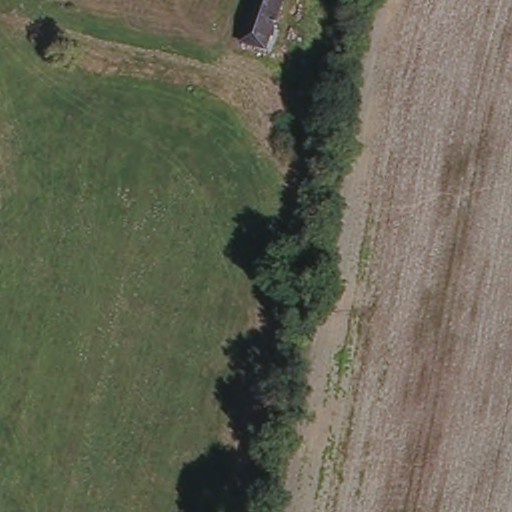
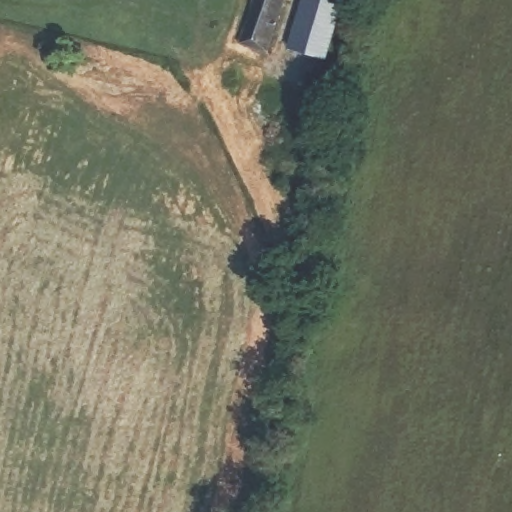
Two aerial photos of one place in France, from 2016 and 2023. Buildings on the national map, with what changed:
unchanged [(243,41),(255,0),(283,0),(269,46),(243,41)]
new [(343,5),(327,62),(291,51),(306,0),(322,0),(343,5)]

